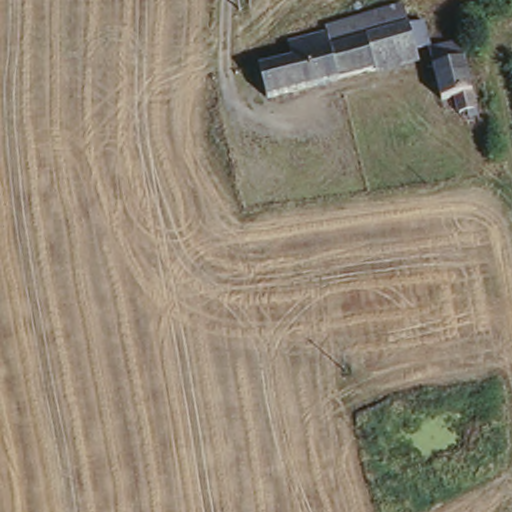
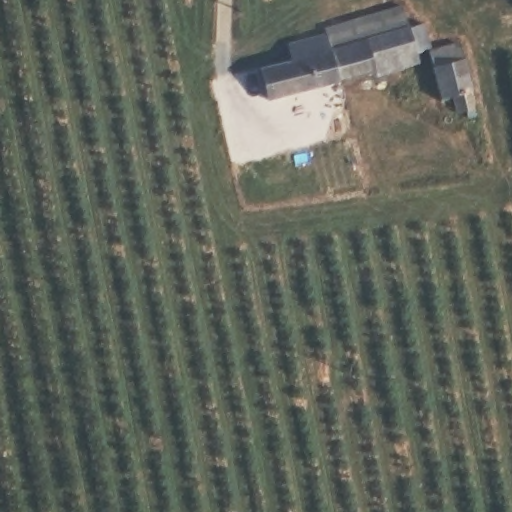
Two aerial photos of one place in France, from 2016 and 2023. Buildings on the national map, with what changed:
unchanged [(352,25),(350,21),(348,13),(399,0),(403,0),(408,23),(388,28),(356,36),(352,25)]
unchanged [(287,55),(285,39),(350,21),(352,25),(356,36),(388,28),(431,16),(438,49),(399,59),(400,68),(262,106),(255,65),(287,55)]
unchanged [(481,123),(472,123),(470,113),(460,114),(460,101),(450,103),(443,53),(470,48),(481,123)]

